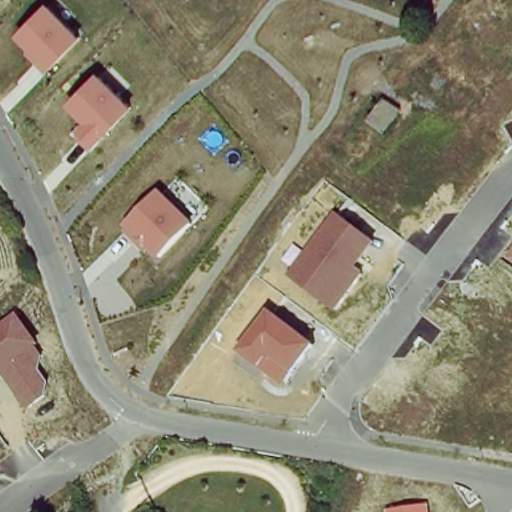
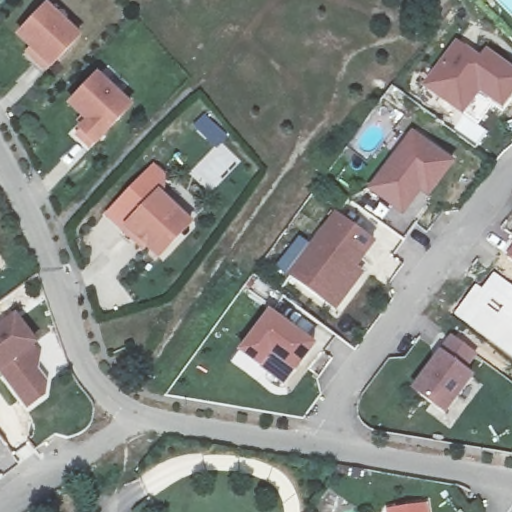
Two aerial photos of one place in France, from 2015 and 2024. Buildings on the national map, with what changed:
unchanged [(25,54),(30,49),(16,34),(48,3),(84,37),(48,75),(25,54)]
new [(458,39),(481,56),(487,49),(512,67),(512,98),(504,109),(480,93),(463,116),(423,85),(458,39)]
unchanged [(78,130),(85,122),(68,105),(99,71),(136,107),(99,147),(78,130)]
demolished [(403,110),(386,131),(369,118),(385,95),(403,110)]
new [(396,206),(374,189),(416,133),(448,157),(456,163),(432,195),(424,189),(413,204),(406,213),(396,206)]
unchanged [(124,227),(159,189),(195,224),(161,262),(124,227)]
unchanged [(358,268),(366,273),(338,312),(289,278),(334,213),(376,242),(358,268)]
unchanged [(506,259),(512,250),(512,263),(506,259)]
new [(474,282),(480,286),(492,271),(512,286),(512,358),(452,311),(474,282)]
unchanged [(286,385),(238,353),(269,310),(316,345),(286,385)]
unchanged [(37,347),(43,356),(40,369),(50,383),(48,396),(28,412),(1,371),(0,373),(0,325),(18,313),(40,345),(37,347)]
unchanged [(456,338),(480,355),(468,371),(476,377),(449,414),(417,390),(456,338)]
unchanged [(429,503),(431,512),(386,512),(386,510),(429,503)]

